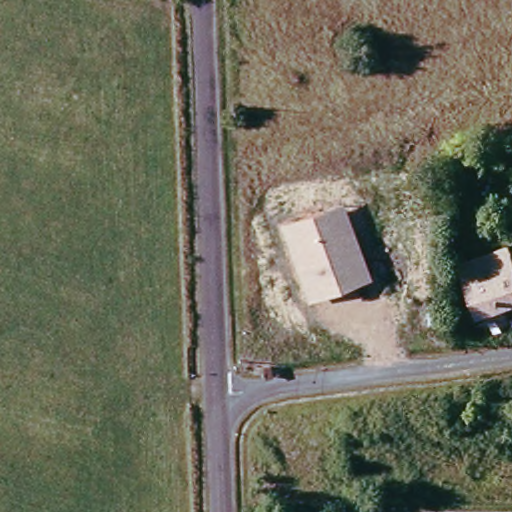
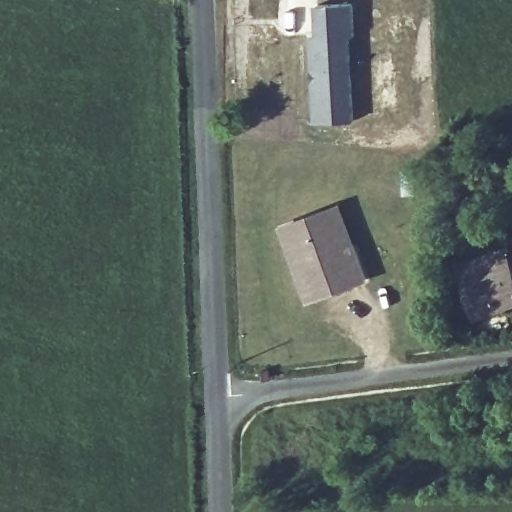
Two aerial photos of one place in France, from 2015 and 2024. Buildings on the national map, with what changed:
new [(316,35),(315,4),(353,2),(355,32),(354,120),(313,122),(310,35),(316,35)]
unchanged [(372,277),(308,302),(281,225),(343,200),(372,277)]
unchanged [(512,256),(512,306),(477,320),(456,265),(510,246),(510,252),(512,256)]
unchanged [(512,251),(512,256),(510,252),(512,251)]

